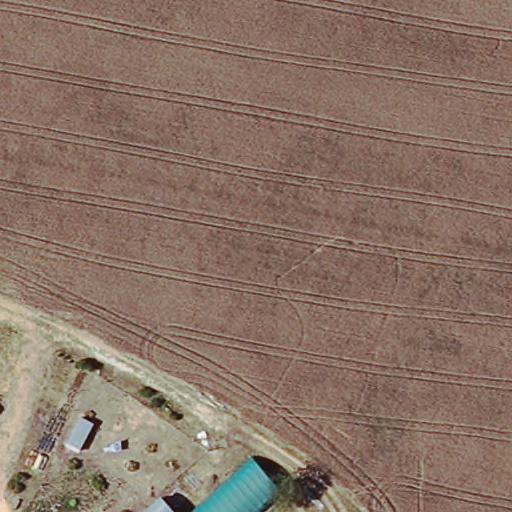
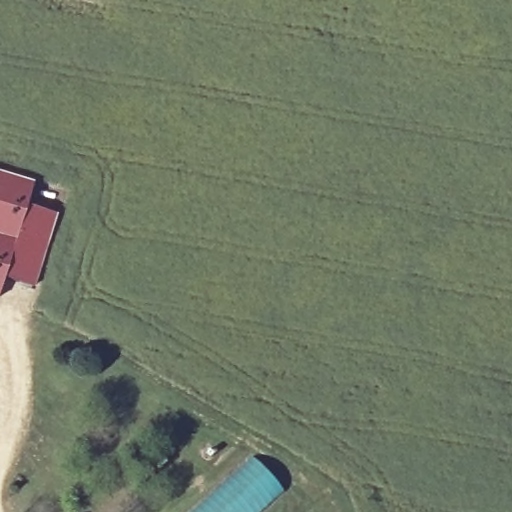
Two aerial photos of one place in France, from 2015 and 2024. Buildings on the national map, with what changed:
new [(26,204),(3,281),(0,291),(0,174),(32,184),(26,204)]
new [(35,291),(3,281),(26,204),(57,214),(35,291)]
unchanged [(282,493),(261,512),(182,512),(251,452),(282,493)]
new [(175,512),(136,512),(158,492),(175,512)]

